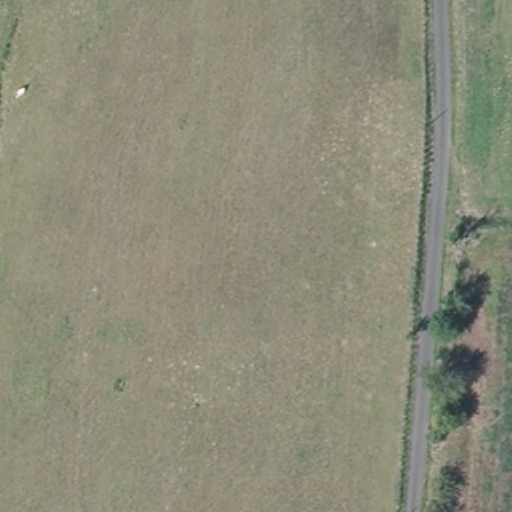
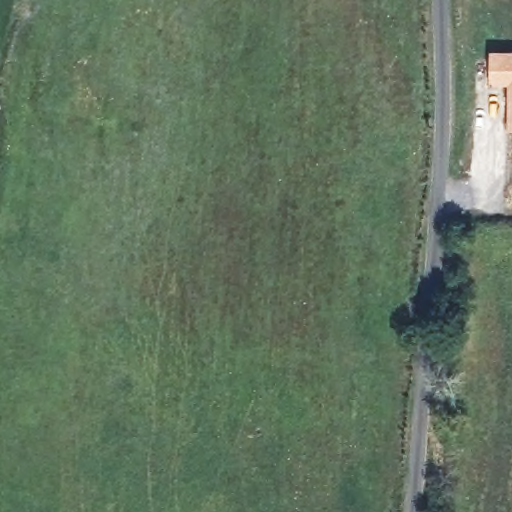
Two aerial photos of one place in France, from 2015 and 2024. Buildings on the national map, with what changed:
new [(512,132),(508,132),(509,84),(490,84),(490,50),(512,50),(512,132)]

